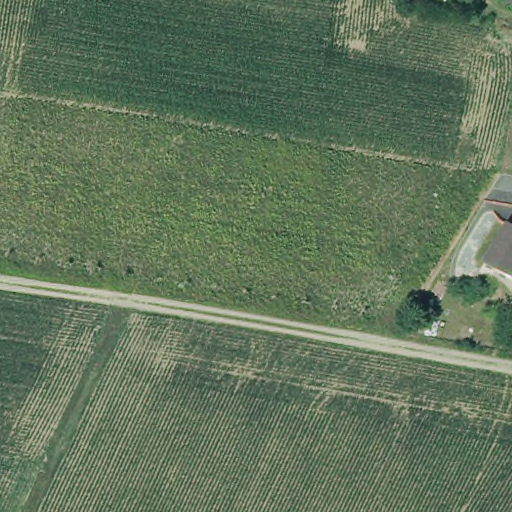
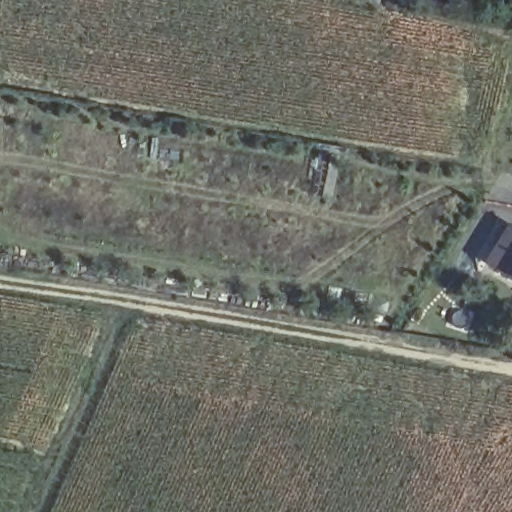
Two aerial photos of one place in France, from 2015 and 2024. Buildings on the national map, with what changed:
unchanged [(504,0),(512,0),(512,6),(503,4),(504,0)]
unchanged [(506,231),(512,234),(512,283),(483,265),(506,231)]

